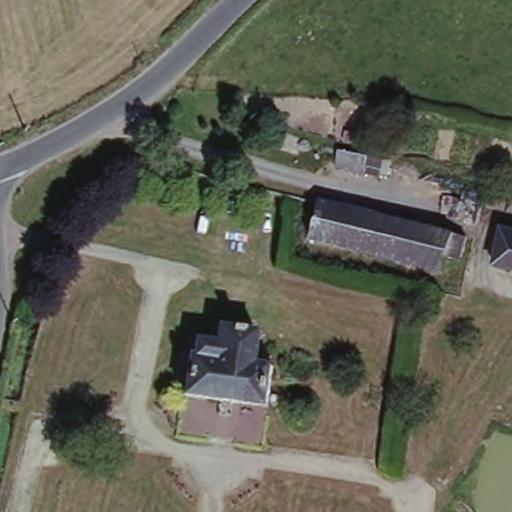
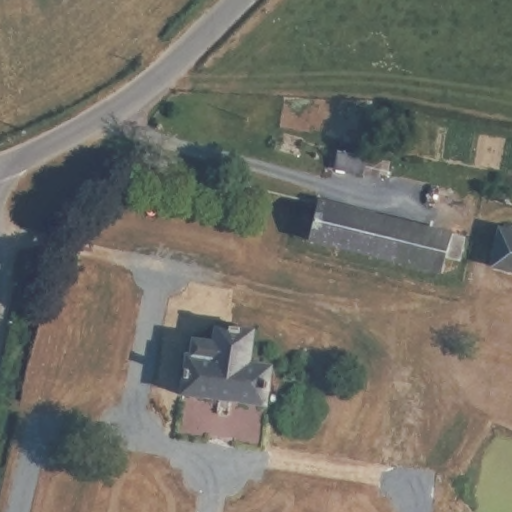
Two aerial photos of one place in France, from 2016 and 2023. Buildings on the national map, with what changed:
unchanged [(391,160),(387,176),(335,164),(339,147),(391,160)]
unchanged [(318,205),(462,240),(456,263),(445,260),(442,276),(311,244),(318,205)]
unchanged [(499,230),(512,232),(512,272),(491,268),(499,230)]
unchanged [(185,360),(190,361),(192,342),(214,345),(214,330),(254,335),(250,367),(272,370),(266,410),(180,399),(185,360)]

